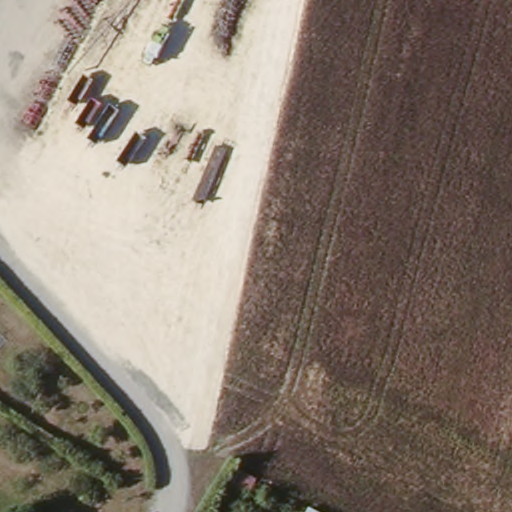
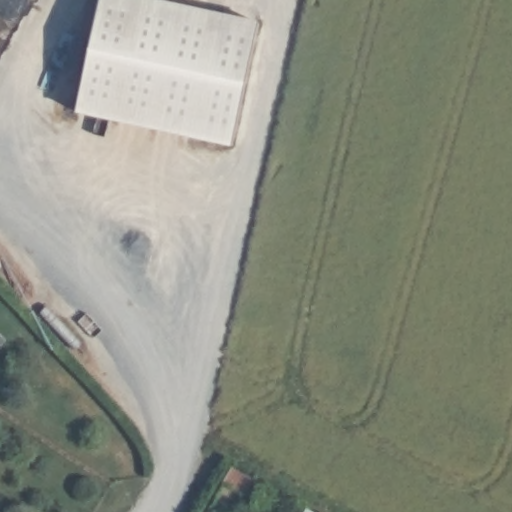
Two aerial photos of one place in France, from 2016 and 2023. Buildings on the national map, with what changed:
new [(259,21),(237,150),(82,115),(107,0),(160,0),(259,21)]
unchanged [(247,488),(238,505),(213,490),(221,475),(247,488)]
new [(304,512),(301,512),(302,511),(304,512)]

